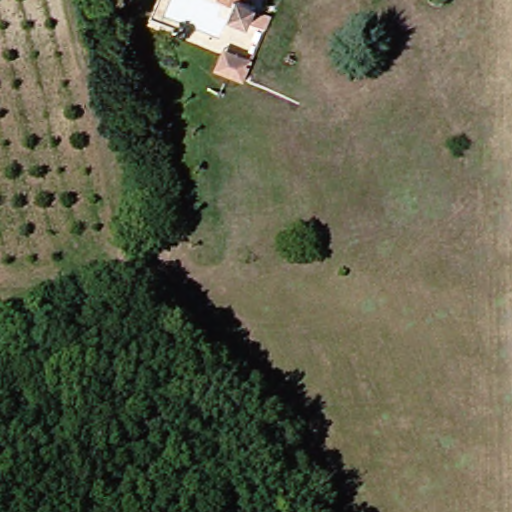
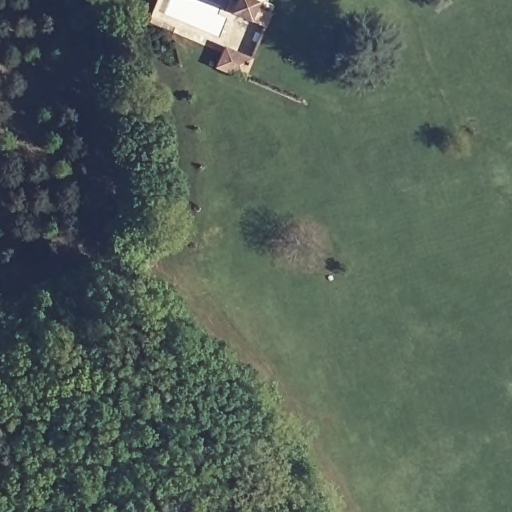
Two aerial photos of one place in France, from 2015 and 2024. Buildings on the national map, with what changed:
unchanged [(278,14),(272,29),(235,11),(237,7),(223,0),(264,0),(262,6),(278,14)]
unchanged [(264,64),(255,84),(221,69),(231,49),(264,64)]

